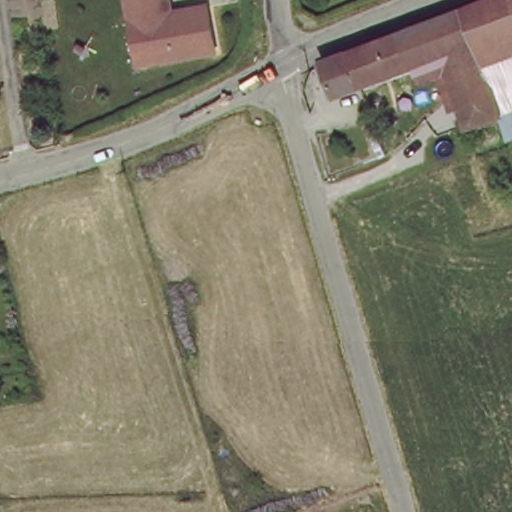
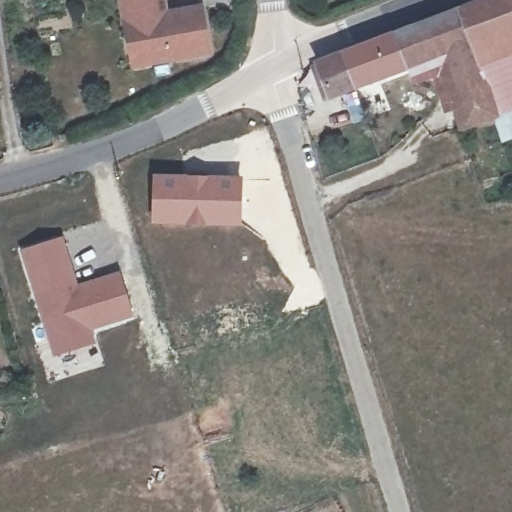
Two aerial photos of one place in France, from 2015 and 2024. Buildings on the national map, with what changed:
unchanged [(209,56),(128,70),(116,0),(168,0),(171,10),(203,3),(209,56)]
unchanged [(480,79),(468,45),(455,10),(482,0),(512,0),(512,38),(503,41),(509,59),(512,67),(480,79)]
unchanged [(336,56),(389,36),(455,10),(468,45),(480,79),(481,83),(449,94),(443,77),(410,89),(403,70),(349,90),(326,99),(313,64),(336,56)]
unchanged [(512,38),(512,58),(509,59),(503,41),(512,38)]
unchanged [(512,69),(512,136),(500,140),(492,116),(481,83),(480,79),(512,67),(512,69)]
unchanged [(492,116),(462,128),(449,94),(481,83),(492,116)]
new [(151,173),(241,175),(241,227),(151,225),(151,173)]
new [(91,331),(95,343),(53,356),(20,250),(63,237),(78,285),(119,272),(133,317),(91,331)]

